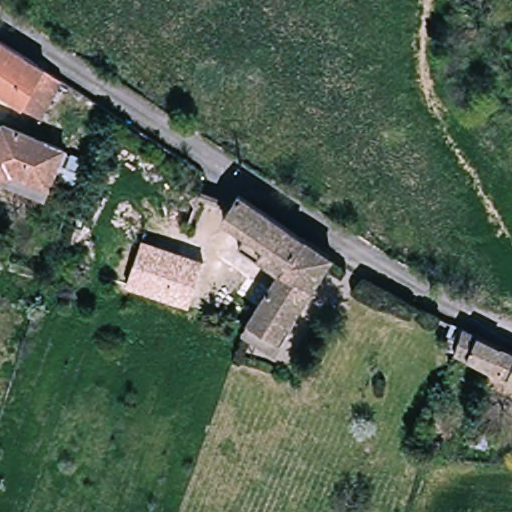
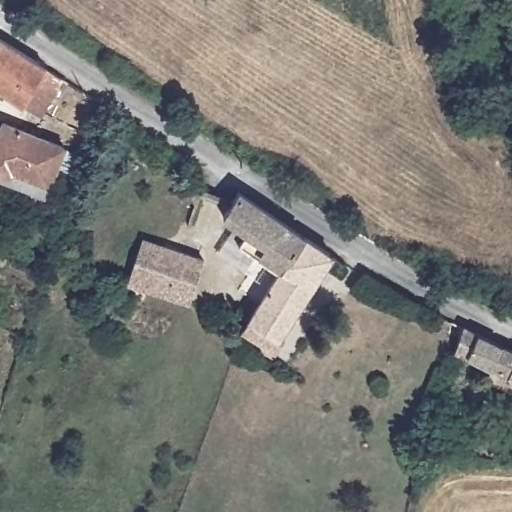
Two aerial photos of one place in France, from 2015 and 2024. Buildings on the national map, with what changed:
unchanged [(62,109),(52,103),(48,110),(38,106),(36,110),(30,105),(24,101),(0,85),(0,43),(3,36),(39,60),(54,71),(75,83),(62,109)]
unchanged [(0,159),(8,130),(12,116),(20,120),(72,145),(60,185),(55,196),(19,179),(22,167),(11,164),(0,159)]
unchanged [(303,229),(281,270),(236,242),(244,231),(221,216),(239,189),(303,229)]
unchanged [(285,339),(254,319),(281,270),(303,229),(335,249),(285,339)]
unchanged [(201,293),(123,268),(131,242),(210,266),(201,293)]
unchanged [(512,341),(512,344),(502,363),(460,345),(472,321),(512,341)]
unchanged [(512,344),(512,368),(502,363),(512,344)]

